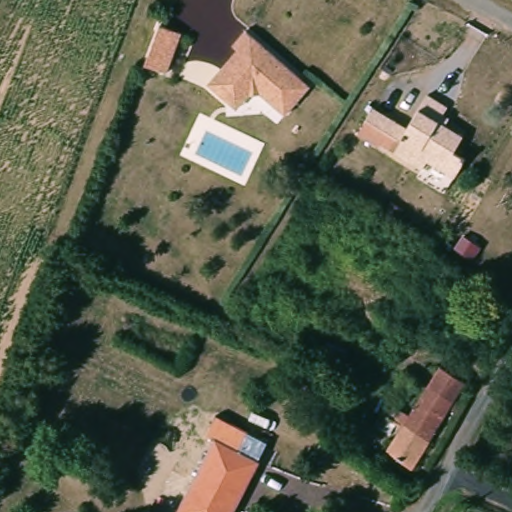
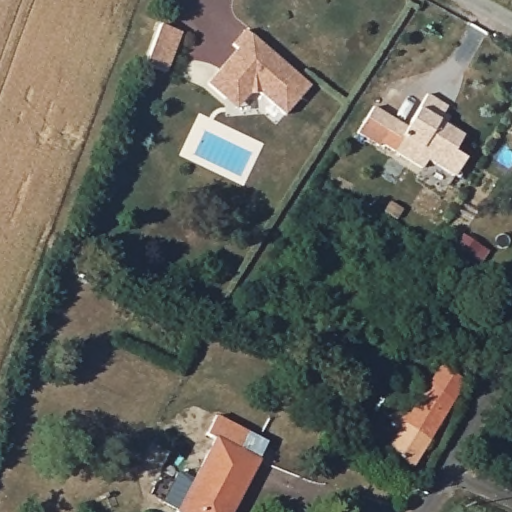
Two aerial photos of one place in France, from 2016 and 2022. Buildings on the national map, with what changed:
unchanged [(159,31),(180,39),(165,79),(144,71),(159,31)]
unchanged [(224,105),(207,90),(222,71),(237,55),(232,50),(244,36),(287,73),(308,91),(284,120),(259,99),(253,95),(245,103),(236,115),(224,105)]
unchanged [(405,127),(406,127),(414,115),(426,94),(427,92),(449,104),(446,110),(457,117),(452,125),(463,132),(455,149),(470,156),(458,175),(457,174),(435,161),(427,172),(427,173),(424,171),(377,145),(357,134),(372,107),(405,127)]
unchanged [(467,385),(412,470),(386,450),(442,365),(467,385)]
unchanged [(249,433),(240,452),(258,462),(233,512),(178,512),(215,440),(207,436),(217,417),(249,433)]

